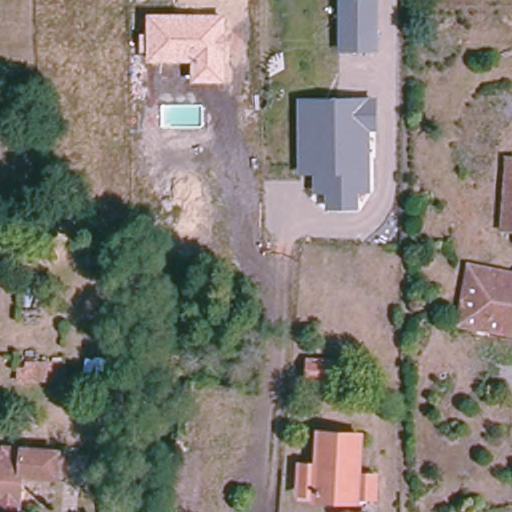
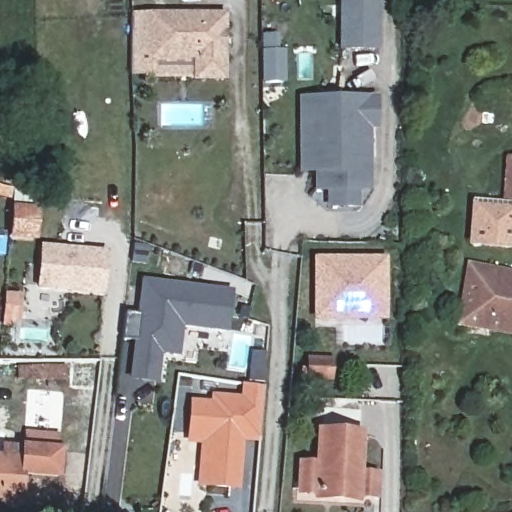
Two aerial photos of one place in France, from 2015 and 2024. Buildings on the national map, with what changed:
unchanged [(379,52),(339,51),(339,0),(380,0),(379,52)]
unchanged [(227,82),(193,82),(193,63),(149,61),(148,53),(141,52),(141,35),(149,34),(149,14),(228,15),(227,82)]
new [(282,55),(282,83),(263,83),(263,55),(282,55)]
unchanged [(379,130),(370,130),(371,193),(359,194),(359,210),(325,210),(325,192),(314,192),(314,174),(296,175),(297,98),(379,98),(379,130)]
new [(471,200),(501,202),(504,155),(512,156),(512,249),(466,245),(471,200)]
new [(11,211),(32,213),(30,239),(9,237),(11,211)]
new [(39,249),(103,255),(100,294),(36,288),(39,249)]
new [(313,257),(386,257),(386,321),(312,321),(313,257)]
unchanged [(512,334),(461,326),(470,266),(512,273),(512,334)]
new [(120,341),(124,313),(138,315),(142,283),(229,293),(225,331),(179,325),(176,354),(157,352),(154,382),(131,379),(134,350),(135,342),(120,341)]
unchanged [(335,359),(333,386),(307,385),(307,358),(335,359)]
new [(22,363),(64,364),(64,384),(22,384),(22,363)]
demolished [(240,386),(227,457),(187,449),(200,378),(240,386)]
new [(230,487),(206,485),(200,485),(202,442),(188,441),(189,435),(191,403),(212,405),(212,397),(242,399),(243,384),(262,387),(258,440),(240,439),(238,470),(237,487),(230,487)]
unchanged [(359,432),(358,468),(375,469),(373,492),(356,492),(355,499),(314,496),(313,488),(295,487),(298,463),(314,465),(318,429),(359,432)]
unchanged [(2,458),(3,449),(61,452),(59,478),(22,475),(19,510),(0,509),(1,500),(0,500),(0,458),(2,458)]

